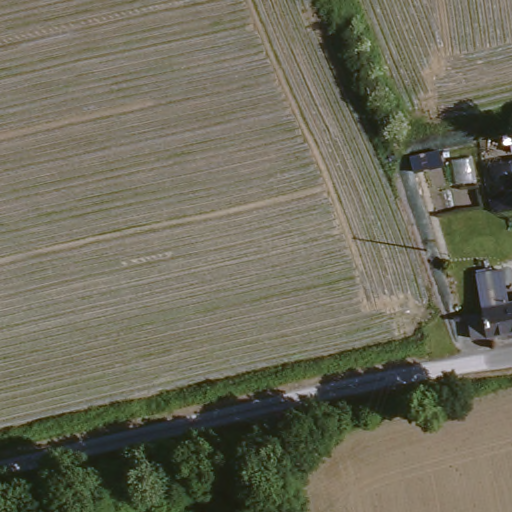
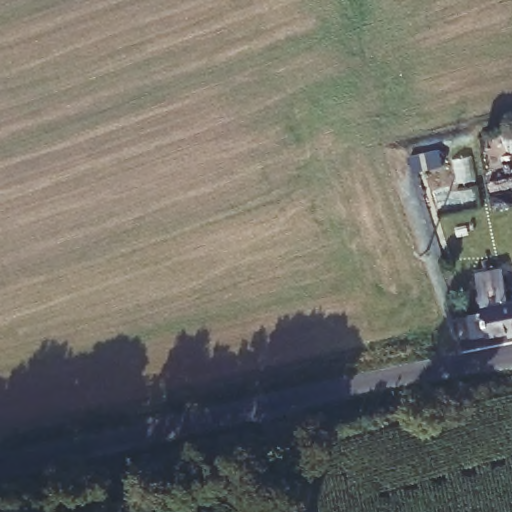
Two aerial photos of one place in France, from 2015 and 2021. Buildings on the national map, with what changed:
unchanged [(438,162),(410,170),(409,170),(405,156),(434,147),(438,162)]
unchanged [(484,316),(476,274),(505,269),(507,289),(509,302),(512,301),(512,333),(484,338),(471,341),(467,318),(484,316)]
unchanged [(507,289),(512,288),(512,301),(509,302),(507,289)]

